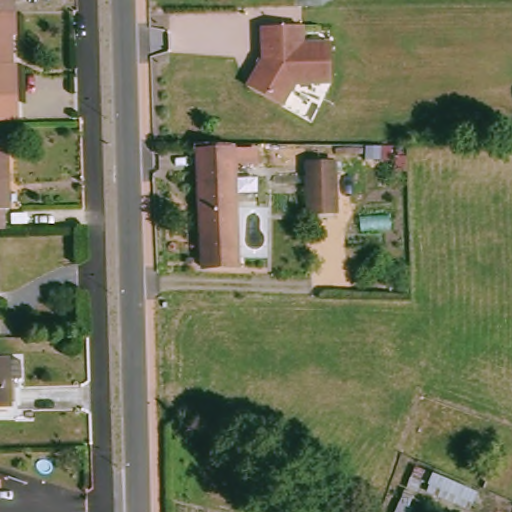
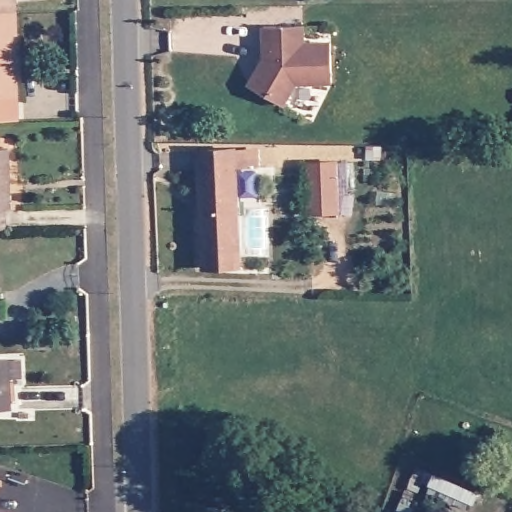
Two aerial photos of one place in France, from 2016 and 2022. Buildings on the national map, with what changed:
unchanged [(0,0),(6,0),(7,10),(0,10),(0,0)]
unchanged [(2,32),(2,61),(8,61),(10,118),(0,118),(0,10),(7,10),(8,10),(9,32),(2,32)]
unchanged [(265,59),(264,26),(304,26),(305,44),(332,44),(332,83),(295,84),(282,105),(248,85),(265,59)]
unchanged [(5,205),(2,205),(2,227),(0,227),(0,147),(5,146),(5,205)]
unchanged [(230,147),(230,149),(252,148),(252,164),(230,165),(232,205),(235,263),(200,265),(194,148),(230,147)]
unchanged [(328,159),(330,208),(305,209),(304,159),(328,159)]
unchanged [(0,407),(0,377),(1,407),(0,407)]
unchanged [(415,492),(407,512),(389,512),(410,464),(429,469),(472,490),(458,510),(415,492)]

